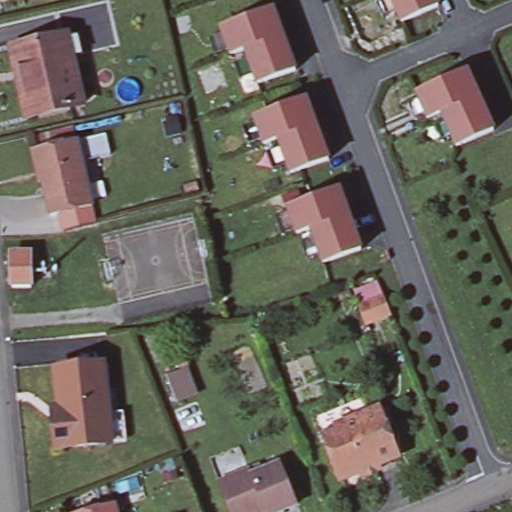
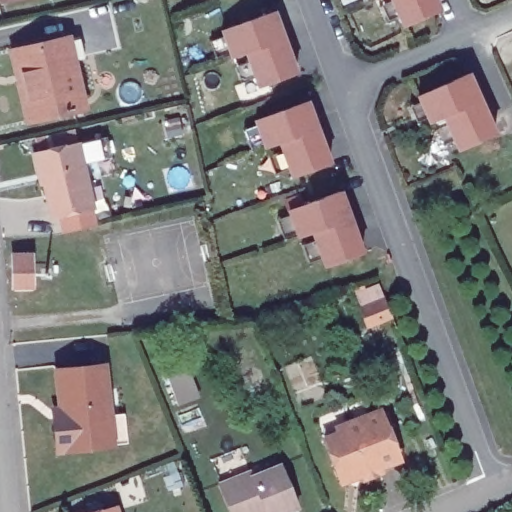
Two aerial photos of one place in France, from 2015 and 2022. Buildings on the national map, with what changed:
unchanged [(439,9),(402,26),(391,0),(435,0),(439,9)]
unchanged [(245,52),(231,57),(221,30),(274,11),(284,38),(245,52)]
unchanged [(284,38),(296,72),(257,86),(245,52),(284,38)]
unchanged [(19,76),(13,51),(67,39),(83,107),(35,119),(30,120),(19,76)]
unchanged [(480,99),(442,116),(429,122),(417,96),(468,73),(480,99)]
unchanged [(495,133),(457,149),(442,116),(480,99),(495,133)]
unchanged [(316,128),(279,142),(265,147),(255,120),(306,101),(316,128)]
unchanged [(329,162),(291,176),(279,142),(316,128),(329,162)]
unchanged [(78,143),(92,140),(96,159),(82,162),(92,207),(50,217),(42,182),(40,183),(33,152),(38,151),(78,142),(78,143)]
unchanged [(350,218),(312,231),(298,236),(288,210),(340,191),(350,218)]
unchanged [(350,218),(361,252),(324,266),(312,231),(350,218)]
unchanged [(31,255),(32,289),(13,290),(12,255),(31,255)]
unchanged [(384,297),(391,315),(368,324),(361,307),(384,297)]
unchanged [(125,444),(111,445),(57,450),(55,426),(53,410),(60,409),(56,370),(103,365),(108,416),(123,414),(125,444)]
unchanged [(345,481),(340,478),(329,454),(323,439),(320,433),(336,427),(379,411),(397,455),(395,460),(378,468),(380,471),(364,478),(361,474),(355,477),(350,479),(345,481)]
unchanged [(210,460),(240,448),(250,472),(252,477),(280,465),(297,507),(284,512),(231,512),(220,484),(210,460)]
unchanged [(115,512),(99,512),(113,508),(115,512)]

